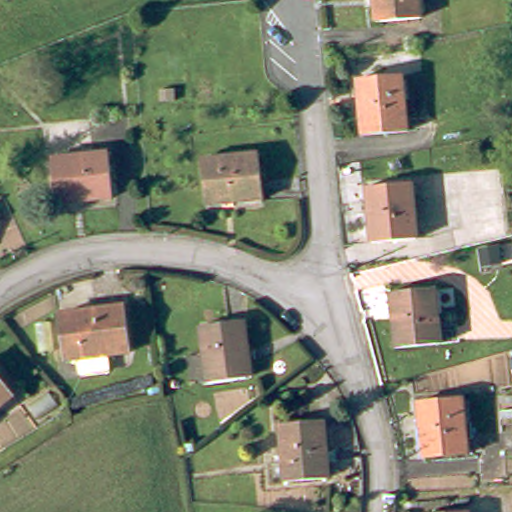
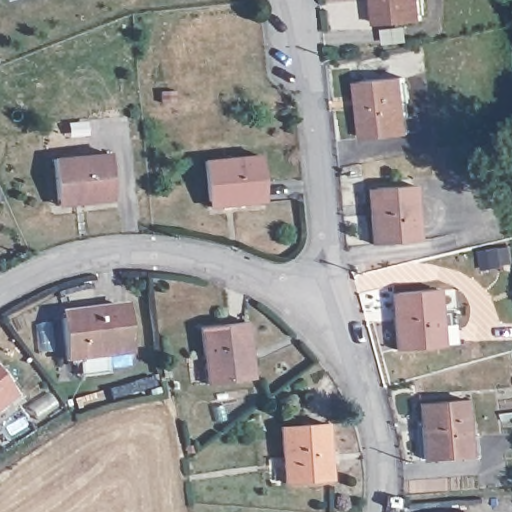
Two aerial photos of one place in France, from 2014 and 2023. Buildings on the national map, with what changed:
unchanged [(375,0),(422,0),(424,19),(382,23),(377,23),(375,0)]
unchanged [(415,138),(367,142),(365,108),(362,85),(368,84),(410,80),(415,138)]
unchanged [(60,199),(55,157),(110,151),(115,199),(80,203),(60,205),(60,199)]
unchanged [(209,201),(205,160),(261,154),(265,201),(235,204),(210,206),(209,201)]
unchanged [(424,244),(377,249),(374,216),(372,193),(377,192),(419,189),(424,244)]
unchanged [(448,349),(402,355),(399,321),(396,298),(402,298),(442,294),(448,349)]
unchanged [(109,360),(110,375),(82,378),(82,364),(67,366),(62,320),(127,311),(131,358),(109,360)]
unchanged [(249,378),(207,383),(200,327),(247,321),(252,354),(255,378),(249,378)]
unchanged [(0,409),(0,378),(15,397),(0,409)]
unchanged [(470,455),(424,459),(421,427),(419,403),(424,402),(465,398),(470,455)]
unchanged [(289,488),(285,430),(332,426),(337,484),(289,488)]

